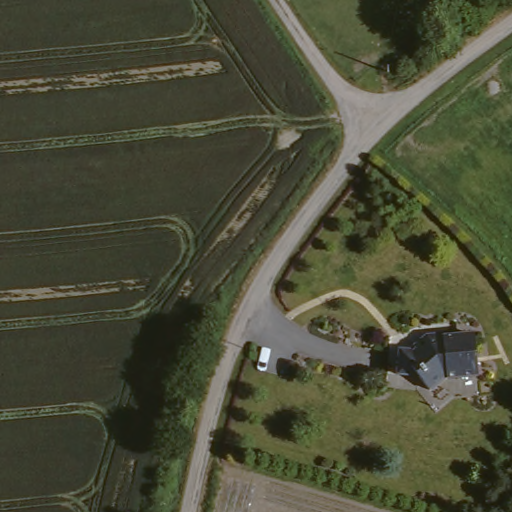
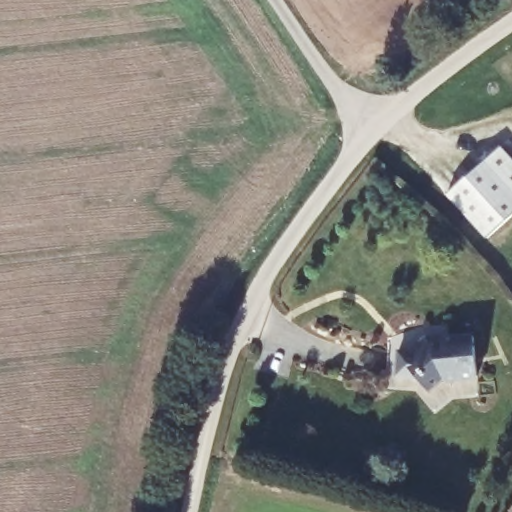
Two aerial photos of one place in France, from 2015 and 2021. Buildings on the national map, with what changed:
new [(486,160),(502,146),(512,158),(512,214),(488,237),(447,195),(486,160)]
unchanged [(414,347),(427,337),(435,337),(436,344),(473,345),(473,385),(444,384),(428,393),(413,376),(400,376),(392,376),(392,350),(399,351),(414,351),(414,347)]

